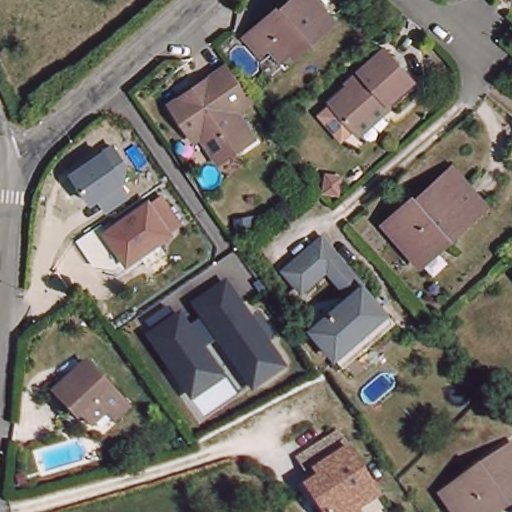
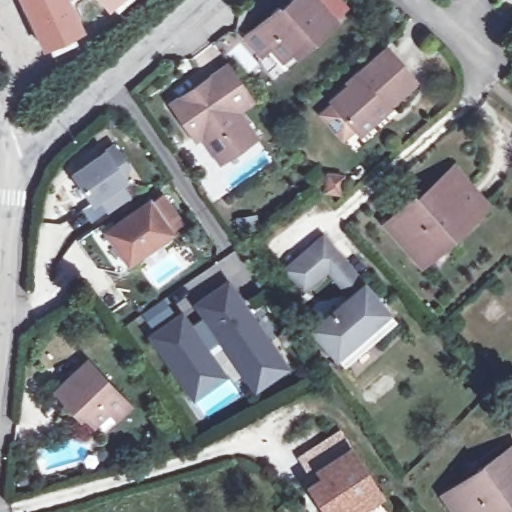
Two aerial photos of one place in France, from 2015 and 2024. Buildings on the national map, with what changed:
new [(86,32),(76,37),(79,42),(51,57),(48,52),(45,53),(19,0),(73,0),(86,32)]
new [(110,12),(98,0),(124,0),(110,12)]
unchanged [(261,53),(245,36),(277,7),(280,10),(291,0),(317,0),(336,20),(310,43),(306,39),(282,59),(270,46),(261,53)]
unchanged [(359,138),(354,132),(331,106),(349,91),(346,88),(360,75),(387,52),(415,84),(389,107),(391,109),(359,138)]
unchanged [(171,110),(230,69),(253,102),(237,113),(256,142),(221,167),(201,138),(194,143),(171,110)]
unchanged [(65,76),(74,86),(60,98),(52,88),(65,76)]
unchanged [(71,173),(114,144),(128,165),(126,181),(122,184),(129,197),(106,212),(99,201),(92,205),(71,173)]
unchanged [(486,205),(423,262),(387,222),(408,203),(411,206),(453,168),(486,205)]
unchanged [(163,194),(183,223),(172,232),(151,203),(163,194)]
unchanged [(106,230),(149,200),(172,232),(129,262),(106,230)]
unchanged [(344,366),(312,329),(352,295),(328,267),(303,289),(285,269),(323,236),(396,321),(344,366)]
unchanged [(155,331),(148,322),(168,309),(174,316),(182,311),(192,325),(203,319),(191,301),(230,279),(288,372),(253,393),(219,343),(207,350),(227,380),(191,402),(145,337),(155,331)]
unchanged [(70,410),(56,395),(88,365),(129,410),(116,423),(109,415),(94,428),(86,420),(82,423),(70,410)]
unchanged [(362,512),(332,512),(318,490),(332,480),(327,474),(320,479),(310,463),(345,440),(383,498),(362,512)]
unchanged [(512,445),(512,503),(499,512),(460,512),(446,491),(512,445)]

